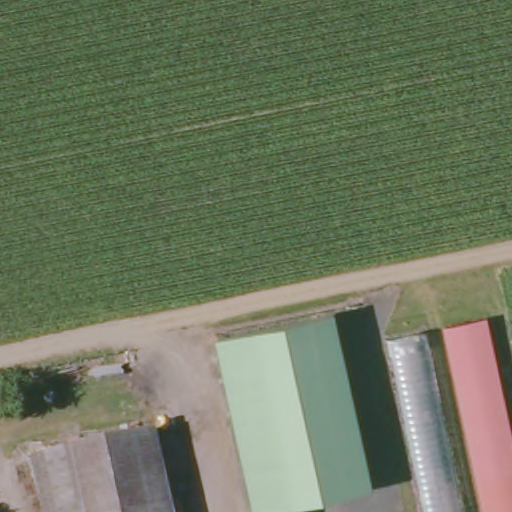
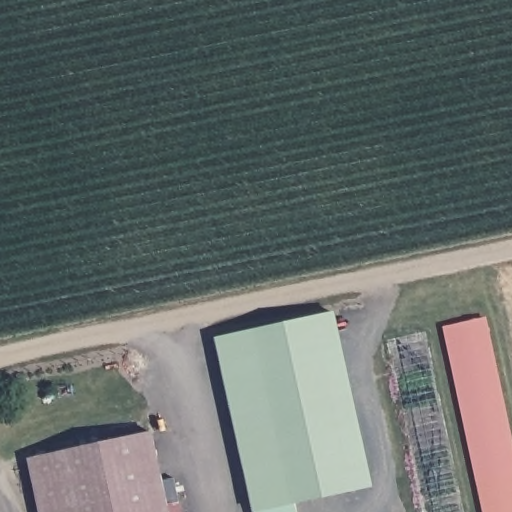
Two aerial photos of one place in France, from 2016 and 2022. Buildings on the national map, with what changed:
unchanged [(329,315),(366,487),(270,507),(233,336),(329,315)]
unchanged [(512,430),(512,512),(491,512),(451,330),(489,324),(512,430)]
unchanged [(466,512),(426,512),(389,348),(429,340),(466,512)]
unchanged [(172,504),(183,503),(185,512),(48,512),(37,459),(158,434),(172,504)]

